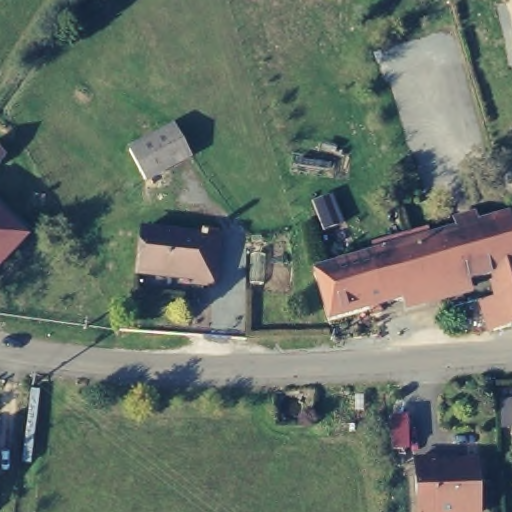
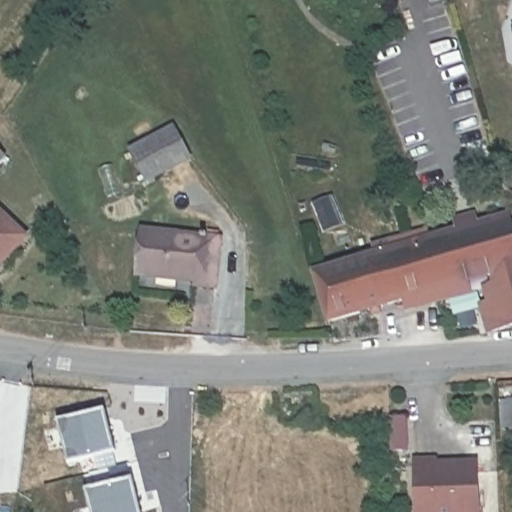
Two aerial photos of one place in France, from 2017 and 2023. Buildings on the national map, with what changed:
new [(447,1),(432,5),(431,0),(447,0),(447,1)]
unchanged [(173,122),(192,160),(145,184),(125,147),(173,122)]
unchanged [(22,229),(0,257),(0,209),(22,229)]
unchanged [(512,229),(512,320),(505,322),(490,270),(436,285),(324,320),(313,285),(310,270),(506,211),(512,229)]
unchanged [(217,237),(211,285),(192,283),(193,274),(133,265),(141,225),(217,237)]
unchanged [(500,401),(512,401),(512,435),(501,435),(500,401)]
new [(60,426),(108,412),(120,453),(72,468),(60,426)]
unchanged [(443,463),(482,462),(483,512),(422,512),(421,457),(442,457),(443,463)]
new [(140,512),(91,512),(86,490),(132,478),(140,512)]

